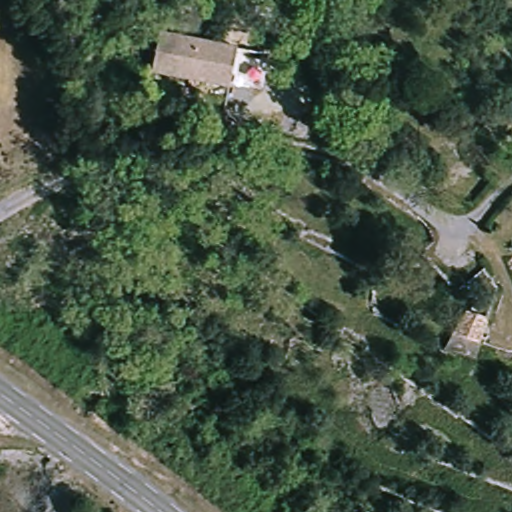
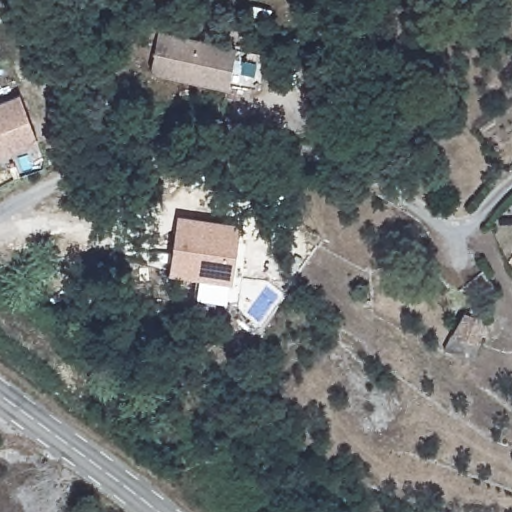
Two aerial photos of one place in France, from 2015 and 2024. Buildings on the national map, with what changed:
unchanged [(234,48),(245,49),(242,87),(221,86),(163,80),(167,42),(234,48)]
new [(0,102),(20,95),(39,143),(0,157),(0,102)]
new [(171,275),(178,220),(240,228),(232,284),(241,284),(238,305),(195,299),(197,279),(171,275)]
unchanged [(463,309),(479,313),(468,355),(452,350),(463,309)]

